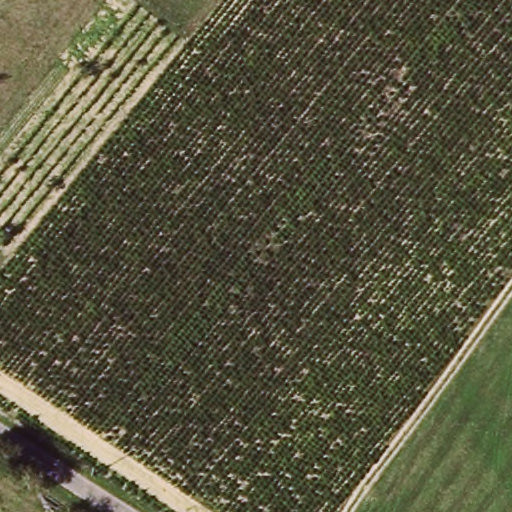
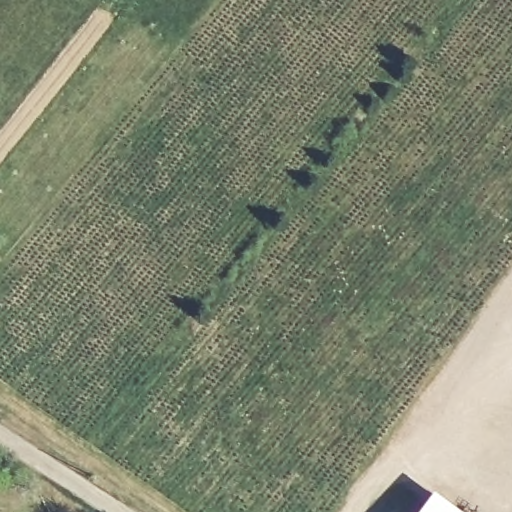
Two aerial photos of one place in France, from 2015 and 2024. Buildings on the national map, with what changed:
new [(455,512),(426,512),(420,507),(431,493),(455,512)]
new [(426,512),(417,512),(420,507),(426,512)]

